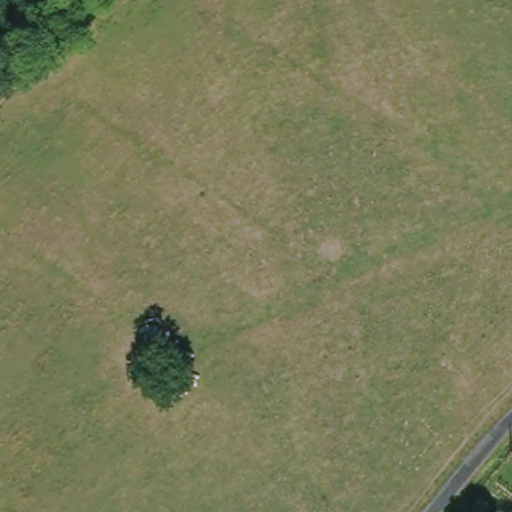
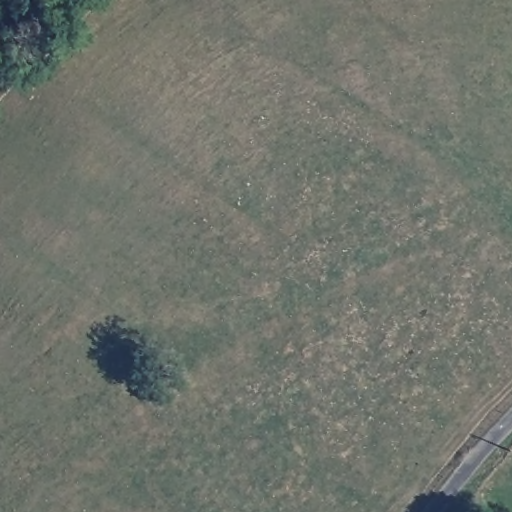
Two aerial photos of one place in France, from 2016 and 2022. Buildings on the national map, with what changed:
[]

